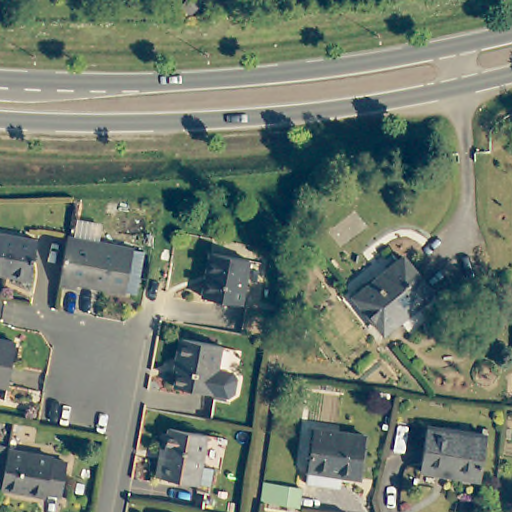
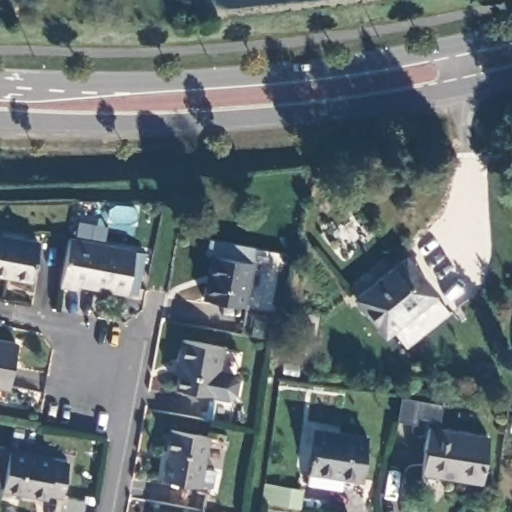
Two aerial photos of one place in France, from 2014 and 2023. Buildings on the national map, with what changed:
unchanged [(30,280),(0,274),(0,234),(38,241),(30,280)]
unchanged [(136,294),(126,292),(78,283),(77,288),(60,285),(69,237),(134,249),(144,251),(136,294)]
unchanged [(250,259),(242,304),(203,297),(211,252),(250,259)]
unchanged [(356,297),(405,257),(419,275),(434,293),(428,298),(385,333),(356,297)]
unchanged [(237,379),(234,392),(228,396),(214,394),(213,396),(175,389),(180,360),(179,360),(182,339),(222,346),(218,370),(233,373),(237,379)]
unchanged [(0,386),(0,340),(16,343),(8,387),(0,386)]
unchanged [(370,473),(352,470),(350,480),(317,475),(325,423),(376,430),(370,473)]
unchanged [(423,473),(429,427),(488,434),(482,480),(423,473)]
unchanged [(212,486),(199,484),(199,485),(157,477),(161,459),(165,460),(170,428),(208,435),(202,466),(215,468),(212,486)]
unchanged [(2,486),(0,486),(0,446),(9,447),(9,450),(2,486)]
unchanged [(9,450),(54,458),(53,460),(68,462),(62,496),(47,493),(47,497),(2,489),(2,486),(9,450)]
unchanged [(311,502),(273,497),(275,478),(313,483),(311,502)]

